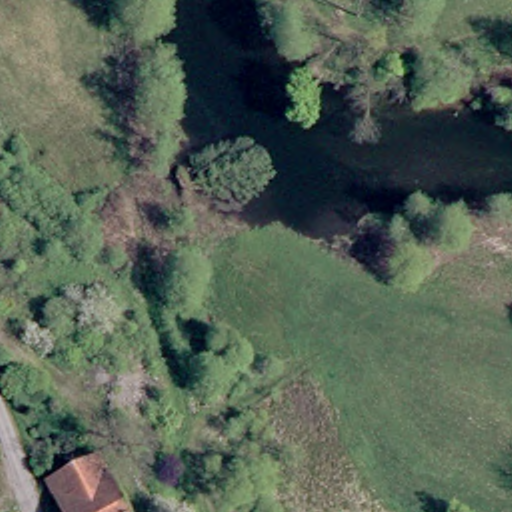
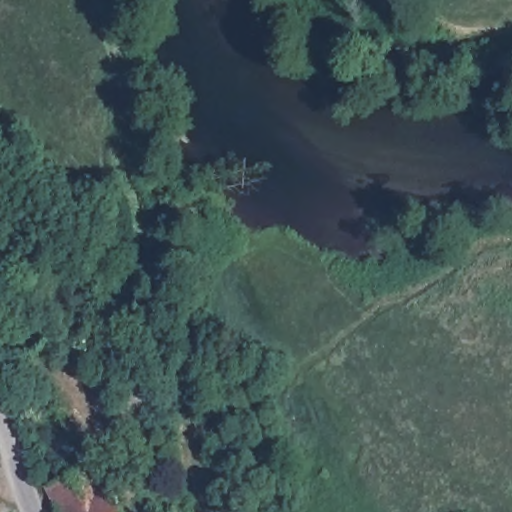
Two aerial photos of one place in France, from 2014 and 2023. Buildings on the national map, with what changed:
unchanged [(132,512),(68,512),(57,491),(110,465),(132,512)]

